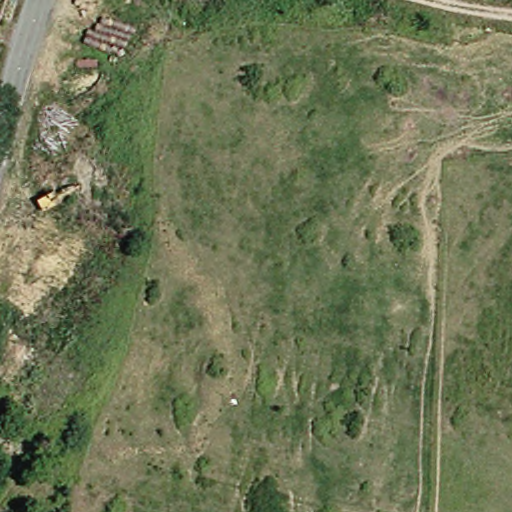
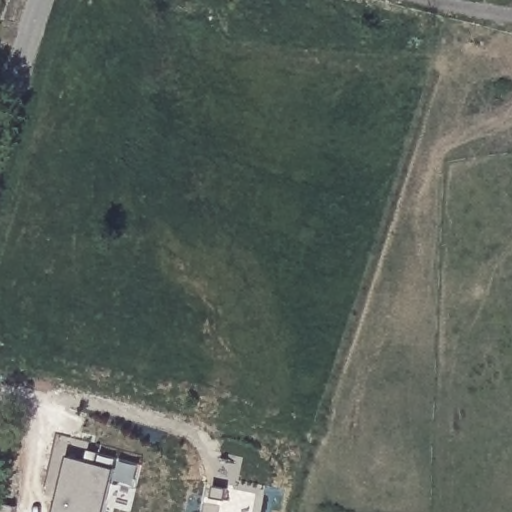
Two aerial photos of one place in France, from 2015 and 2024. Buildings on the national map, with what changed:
new [(114,469),(104,512),(53,512),(65,457),(114,469)]

